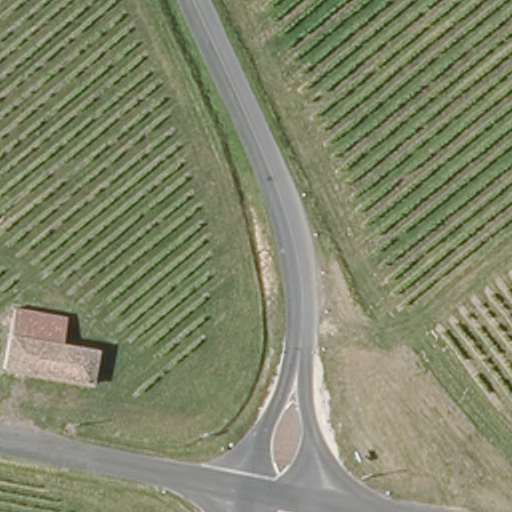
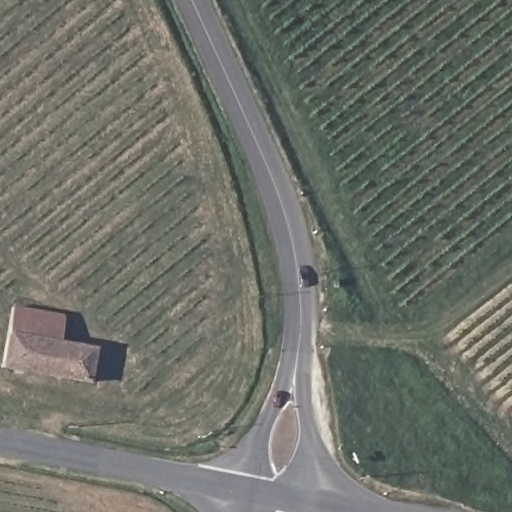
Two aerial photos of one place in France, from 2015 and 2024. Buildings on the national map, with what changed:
unchanged [(66,343),(97,348),(91,382),(2,368),(15,309),(69,317),(66,343)]

